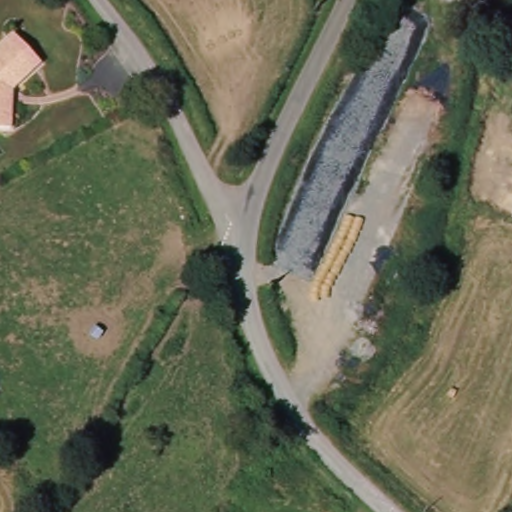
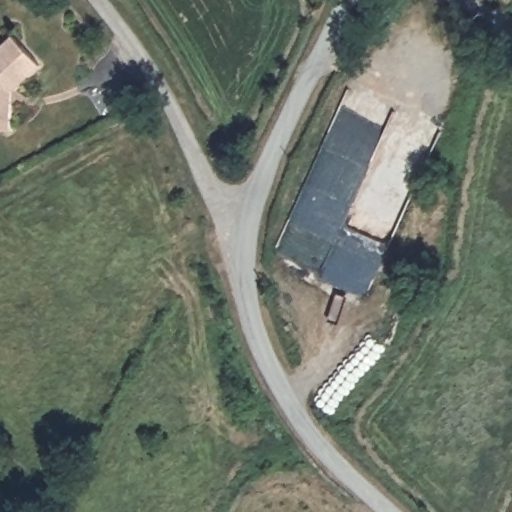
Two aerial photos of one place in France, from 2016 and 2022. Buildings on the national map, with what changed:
unchanged [(38,66),(7,90),(6,127),(0,127),(0,44),(13,34),(38,66)]

